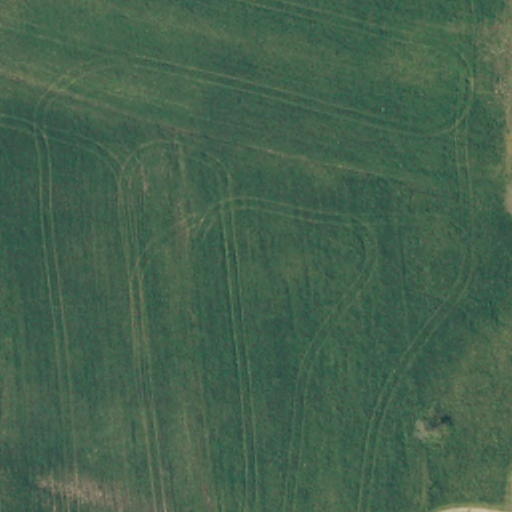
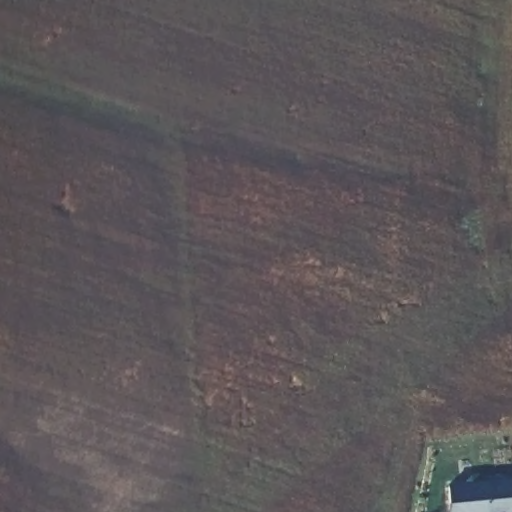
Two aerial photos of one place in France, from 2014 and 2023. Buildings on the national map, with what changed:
new [(445,486),(512,478),(512,512),(446,512),(445,486)]

